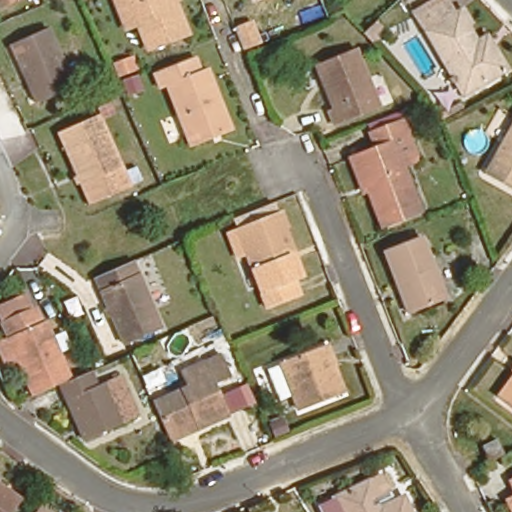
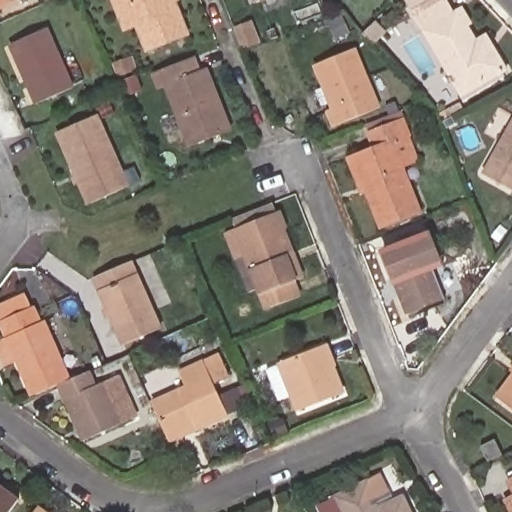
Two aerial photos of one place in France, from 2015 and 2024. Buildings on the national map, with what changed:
unchanged [(112,0),(169,0),(185,34),(146,52),(136,28),(126,32),(112,0)]
unchanged [(460,95),(422,28),(415,15),(441,0),(446,0),(452,10),(457,8),(463,4),(473,21),(467,25),(476,39),(487,32),(497,50),(508,67),(460,95)]
unchanged [(47,29),(70,83),(34,98),(10,45),(47,29)]
unchanged [(349,45),(373,103),(328,121),(322,106),(327,104),(312,61),(349,45)]
unchanged [(136,52),(140,64),(138,64),(121,71),(117,59),(136,52)]
unchanged [(197,56),(223,114),(182,132),(157,72),(197,56)]
unchanged [(92,110),(124,180),(86,195),(57,127),(92,110)]
unchanged [(512,112),(512,183),(482,166),(512,112)]
unchanged [(362,149),(371,146),(365,132),(405,116),(412,113),(418,129),(411,133),(418,153),(403,160),(422,207),(383,220),(371,188),(367,189),(352,153),(362,149)]
unchanged [(269,303),(249,249),(241,252),(231,226),(239,223),(278,208),(296,250),(304,271),(297,274),(303,290),(295,293),(269,303)]
unchanged [(421,230),(444,288),(407,303),(385,245),(421,230)]
unchanged [(127,257),(155,323),(119,338),(90,273),(127,257)]
unchanged [(6,361),(0,347),(0,337),(9,333),(2,318),(0,313),(0,303),(27,291),(34,305),(40,321),(46,318),(47,319),(72,379),(62,384),(35,396),(18,356),(6,361)]
unchanged [(317,344),(336,392),(292,408),(272,361),(317,344)]
unchanged [(151,399),(189,384),(183,371),(206,360),(229,410),(197,425),(169,438),(165,431),(151,399)]
unchanged [(104,379),(122,371),(129,387),(140,411),(122,419),(86,436),(62,384),(72,379),(91,370),(97,383),(104,379)]
unchanged [(512,375),(512,407),(497,397),(512,375)]
unchanged [(482,444),(495,438),(501,451),(487,457),(482,444)]
unchanged [(403,494),(413,512),(325,512),(323,507),(335,501),(379,477),(391,501),(403,494)]
unchanged [(0,510),(0,485),(12,494),(0,510)]
unchanged [(512,487),(512,497),(508,489),(512,487)]
unchanged [(44,512),(33,512),(37,507),(44,512)]

